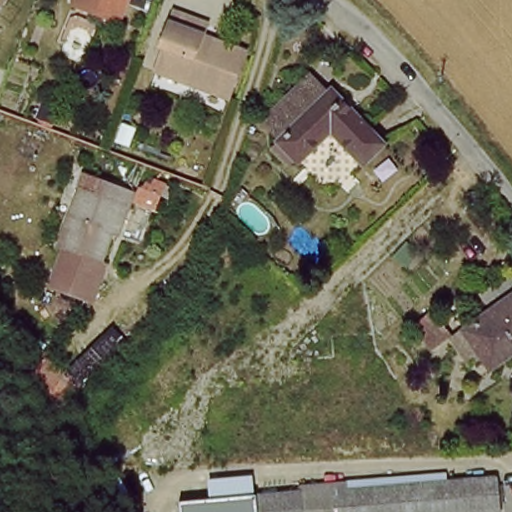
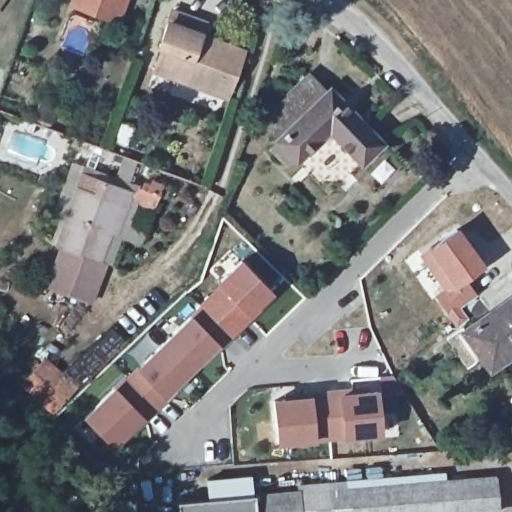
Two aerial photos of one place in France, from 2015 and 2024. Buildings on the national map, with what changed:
unchanged [(0,0),(1,0),(0,2),(0,0)]
unchanged [(72,4),(74,0),(124,0),(116,21),(72,4)]
unchanged [(228,94),(198,83),(197,86),(155,70),(163,47),(160,45),(173,11),(205,23),(200,35),(207,38),(244,51),(228,94)]
unchanged [(327,93),(331,89),(383,144),(363,163),(330,129),(297,161),(293,157),(287,163),(272,147),(281,138),(268,125),(263,119),(272,111),(309,75),(327,93)]
unchanged [(106,263),(91,302),(49,287),(64,248),(57,246),(79,186),(76,185),(81,172),(133,191),(127,205),(116,235),(111,232),(100,261),(106,263)]
unchanged [(271,198),(279,190),(287,198),(279,205),(271,198)]
new [(216,282),(241,258),(274,293),(230,335),(200,306),(216,282)]
unchanged [(494,365),(484,351),(470,361),(450,332),(432,345),(414,320),(434,306),(452,331),(454,334),(465,325),(467,327),(480,318),(460,289),(475,278),(484,290),(512,269),(512,352),(494,365)]
new [(220,346),(114,448),(82,416),(113,388),(137,365),(191,315),(200,306),(230,335),(220,346)]
demolished [(351,409),(307,438),(282,406),(326,374),(351,409)]
new [(344,438),(314,441),(276,445),(272,398),(299,396),(299,391),(363,385),(363,391),(379,389),(383,433),(344,438)]
unchanged [(255,489),(299,485),(299,480),(345,477),(347,484),(497,472),(500,507),(445,512),(257,512),(255,489)]
unchanged [(178,504),(208,500),(206,479),(254,475),(255,489),(257,512),(179,512),(178,504)]

